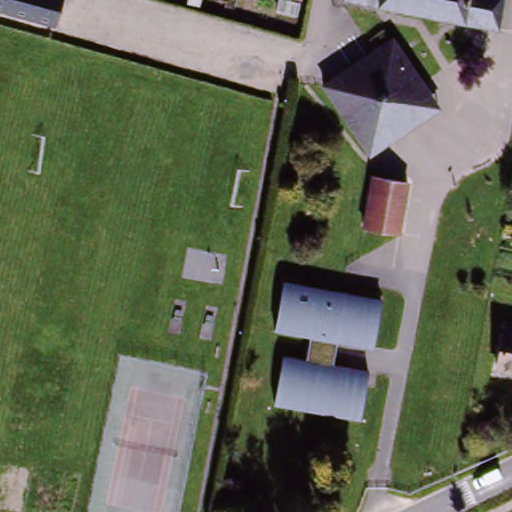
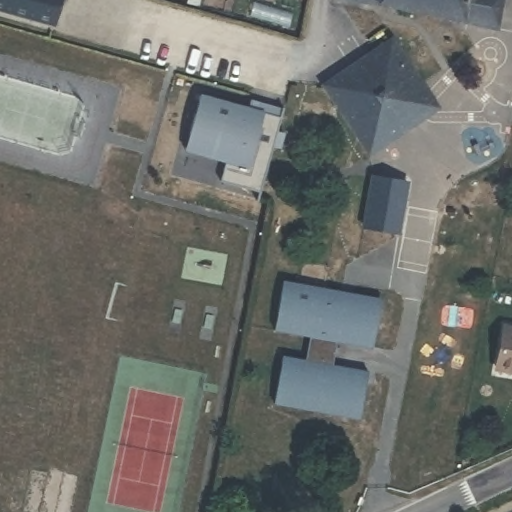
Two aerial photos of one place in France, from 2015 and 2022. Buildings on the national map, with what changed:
unchanged [(0,0),(57,0),(50,26),(0,14),(0,0)]
unchanged [(375,1),(375,5),(352,0),(501,0),(495,29),(459,22),(460,17),(375,1)]
unchanged [(430,90),(389,114),(359,134),(330,86),(370,62),(400,44),(420,73),(430,90)]
unchanged [(444,113),(426,124),(370,159),(370,150),(359,134),(389,114),(430,90),(432,93),(444,113)]
new [(224,181),(228,160),(186,152),(197,97),(247,107),(247,105),(249,97),(280,104),(276,127),(264,189),(224,181)]
unchanged [(376,180),(408,185),(400,236),(367,231),(376,180)]
unchanged [(302,286),(302,290),(380,304),(372,350),(277,332),(285,285),(302,286)]
unchanged [(504,332),(512,334),(512,373),(497,370),(504,332)]
unchanged [(337,344),(334,365),(367,372),(360,421),(272,405),(281,356),(305,360),(309,338),(337,344)]

